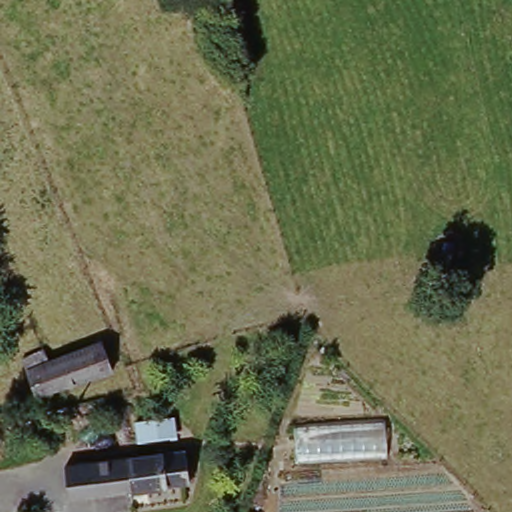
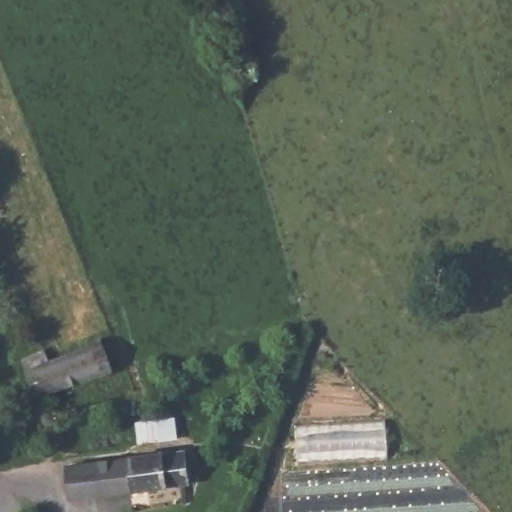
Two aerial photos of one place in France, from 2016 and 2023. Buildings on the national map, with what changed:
unchanged [(21,354),(42,347),(46,355),(96,340),(109,373),(38,395),(25,363),(21,354)]
unchanged [(177,435),(137,440),(135,418),(175,412),(177,435)]
unchanged [(391,457),(296,462),(294,421),(389,416),(391,457)]
unchanged [(65,465),(90,461),(188,447),(193,484),(95,496),(70,499),(65,465)]

